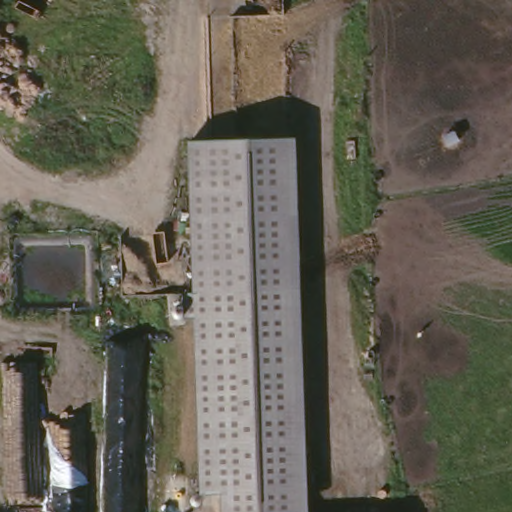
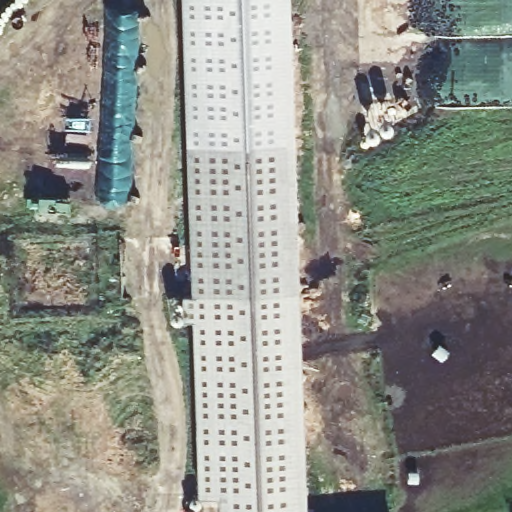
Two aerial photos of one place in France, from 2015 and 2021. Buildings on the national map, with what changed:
new [(188,145),(183,0),(291,0),(292,145),(188,145)]
unchanged [(221,503),(200,503),(188,145),(292,145),(302,512),(222,512),(221,503)]

